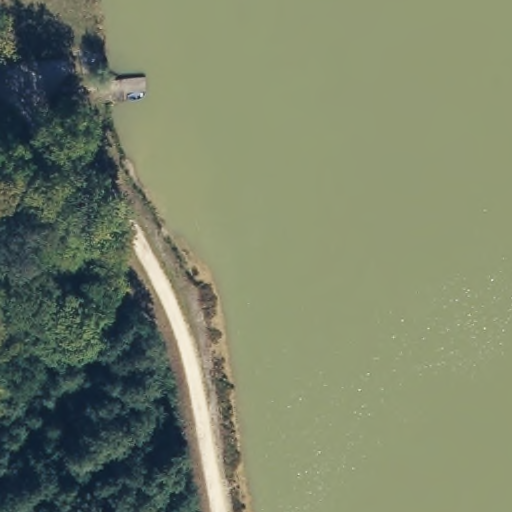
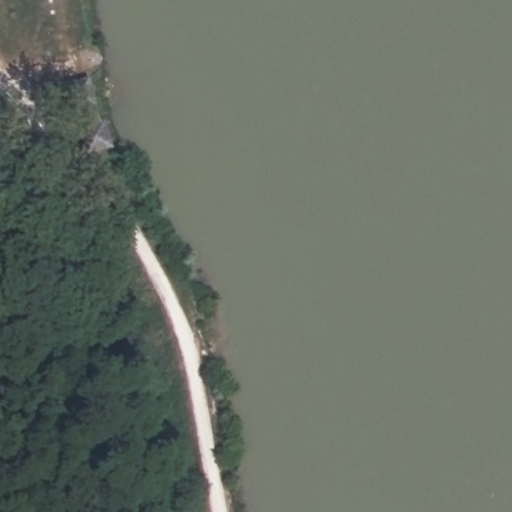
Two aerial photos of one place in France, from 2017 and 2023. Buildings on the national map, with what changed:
unchanged [(110,79),(112,100),(87,100),(89,76),(110,79)]

